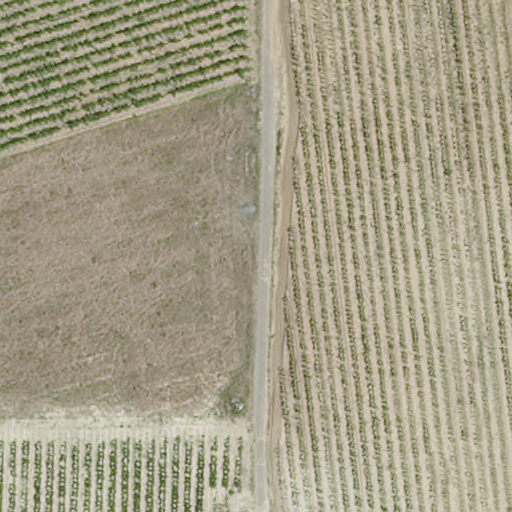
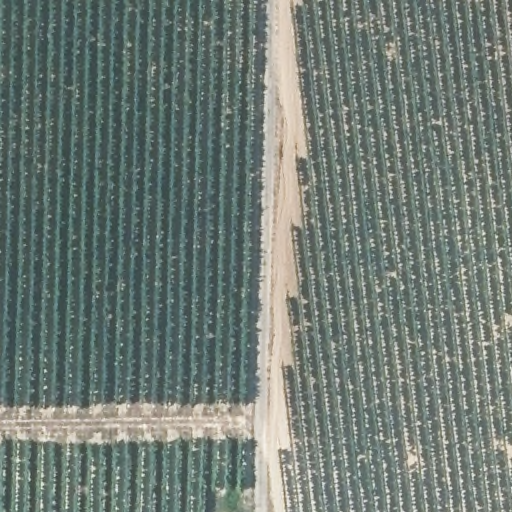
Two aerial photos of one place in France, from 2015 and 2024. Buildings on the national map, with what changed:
unchanged [(224,509),(239,510),(239,512),(224,512),(224,509)]

